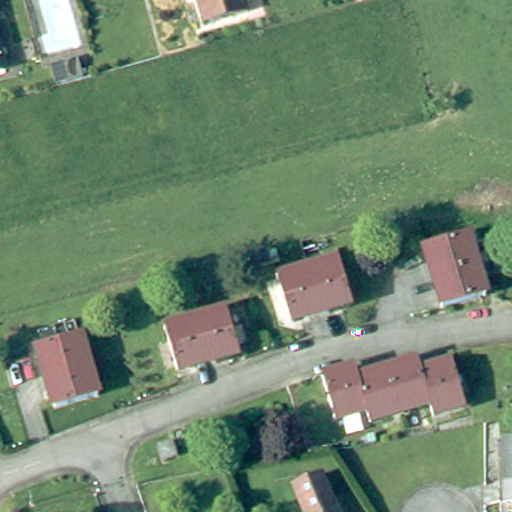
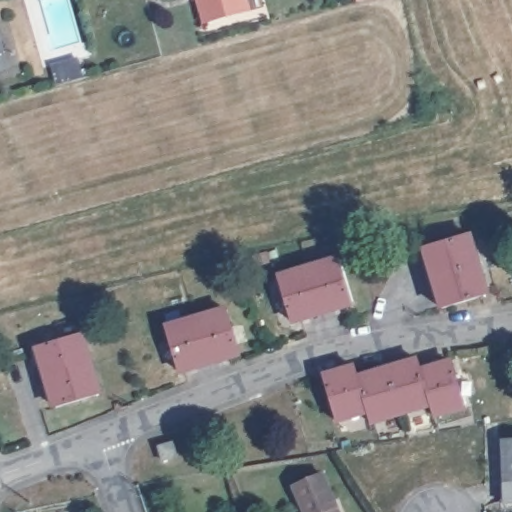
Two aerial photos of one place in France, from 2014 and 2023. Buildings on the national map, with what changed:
unchanged [(199,0),(244,0),(245,5),(208,15),(203,16),(199,0)]
unchanged [(477,298),(437,305),(424,246),(466,239),(477,298)]
unchanged [(346,301),(314,309),(283,317),(272,277),(304,270),(336,262),(346,301)]
unchanged [(232,351),(206,359),(179,368),(166,330),(193,321),(219,312),(232,351)]
unchanged [(85,362),(94,389),(54,402),(45,374),(43,369),(38,354),(36,346),(76,335),(85,362)]
unchanged [(385,376),(409,369),(413,382),(418,381),(450,372),(462,411),(429,419),(429,420),(426,410),(397,418),(368,426),(364,411),(363,411),(336,419),(325,382),(352,373),(355,384),(385,376)]
unchanged [(506,498),(504,438),(512,438),(512,498),(506,498)]
unchanged [(181,452),(165,458),(160,445),(176,439),(181,452)]
unchanged [(328,471),(341,512),(304,512),(294,481),(328,471)]

